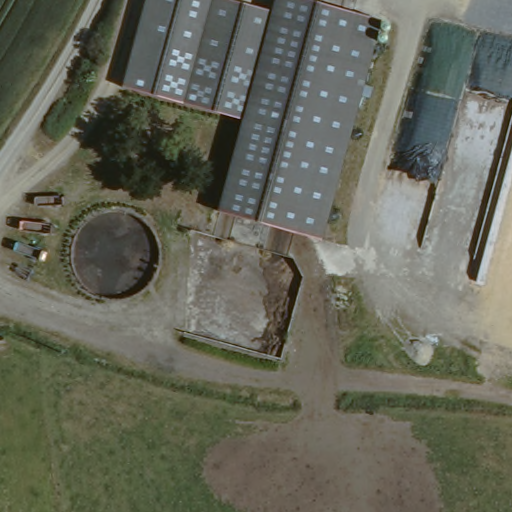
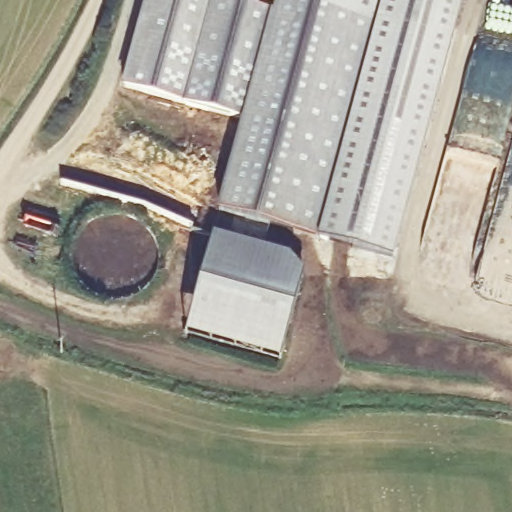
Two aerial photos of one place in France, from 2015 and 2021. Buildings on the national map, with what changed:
unchanged [(244,125),(123,92),(148,0),(217,0),(271,14),(244,125)]
unchanged [(377,22),(321,245),(260,228),(221,217),(244,125),(271,14),(275,0),(296,0),(377,22)]
new [(377,22),(296,0),(464,0),(394,257),(322,240),(377,22)]
new [(187,335),(215,235),(291,256),(305,273),(280,360),(187,335)]

